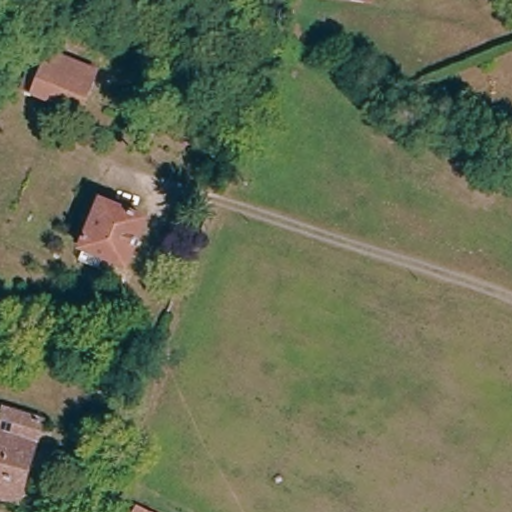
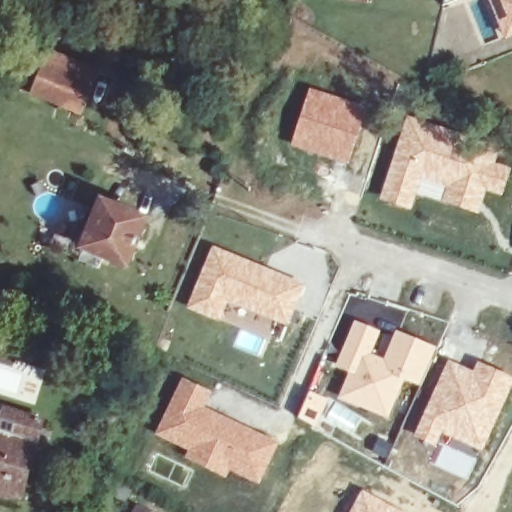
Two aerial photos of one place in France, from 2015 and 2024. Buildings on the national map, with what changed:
unchanged [(319,1),(319,0),(371,0),(370,11),(319,1)]
new [(512,37),(504,40),(488,0),(512,0),(512,37)]
unchanged [(101,78),(99,82),(90,106),(84,119),(35,99),(22,91),(37,54),(51,61),(54,57),(101,78)]
new [(309,87),(369,106),(348,167),(289,147),(309,87)]
new [(407,114),(456,130),(500,147),(496,162),(511,167),(502,197),(486,192),(478,215),(416,195),(410,212),(378,201),(407,114)]
unchanged [(82,263),(87,252),(79,249),(99,200),(148,218),(128,269),(109,261),(105,272),(82,263)]
new [(212,245),(305,285),(287,328),(229,306),(221,324),(184,308),(212,245)]
new [(354,320),(381,331),(372,353),(383,358),(395,331),(436,348),(419,386),(404,380),(388,419),(337,399),(348,373),(334,367),(354,320)]
new [(473,371),(477,362),(512,377),(512,385),(482,451),(440,433),(434,444),(414,435),(448,360),(473,371)]
new [(182,377),(212,392),(205,406),(279,442),(259,486),(229,471),(225,478),(183,459),(187,451),(153,435),(182,377)]
unchanged [(2,412),(43,424),(19,510),(0,504),(0,418),(2,412)]
new [(402,512),(349,512),(362,490),(402,512)]
unchanged [(145,512),(133,512),(136,507),(145,512)]

